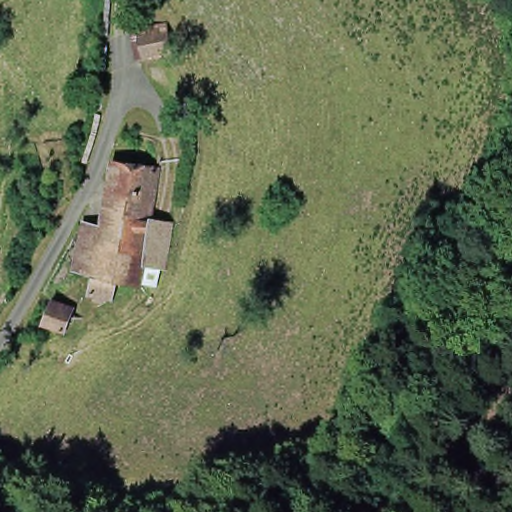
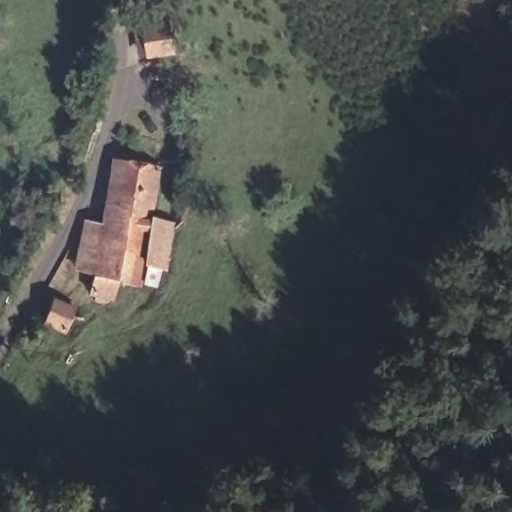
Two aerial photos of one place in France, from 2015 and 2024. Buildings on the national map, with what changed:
unchanged [(164,34),(166,58),(138,61),(135,37),(164,34)]
unchanged [(163,172),(154,211),(157,212),(154,222),(106,213),(116,165),(163,172)]
unchanged [(95,307),(97,298),(89,296),(92,280),(103,227),(106,213),(154,222),(148,243),(141,271),(137,289),(131,288),(129,300),(115,297),(114,302),(108,301),(106,308),(95,307)]
unchanged [(148,243),(154,222),(173,224),(163,276),(141,271),(148,243)]
unchanged [(103,227),(92,280),(69,274),(79,234),(82,223),(85,223),(103,227)]
unchanged [(74,308),(61,333),(60,335),(54,331),(39,322),(52,297),(74,308)]

